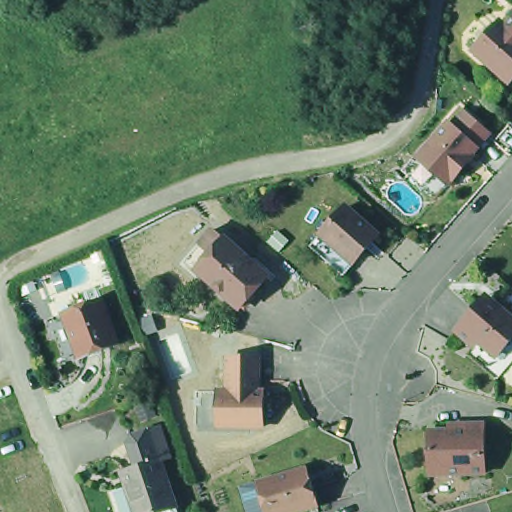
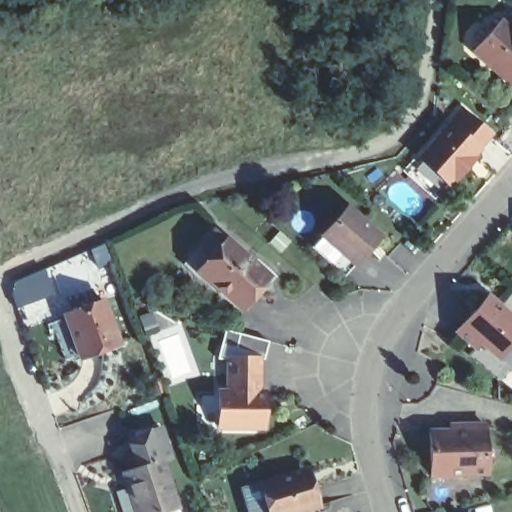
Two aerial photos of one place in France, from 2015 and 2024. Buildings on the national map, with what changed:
unchanged [(512,12),(512,71),(477,41),(505,11),(509,15),(512,12)]
unchanged [(491,132),(448,188),(417,157),(460,106),(491,132)]
unchanged [(322,232),(332,220),(357,192),(386,219),(388,221),(374,237),(363,248),(353,260),(322,232)]
unchanged [(271,266),(278,272),(250,304),(207,266),(197,256),(225,224),(235,234),(263,258),(271,266)]
unchanged [(499,293),(512,304),(512,336),(502,347),(483,331),(478,338),(478,337),(460,322),(485,294),(492,287),(499,293)]
unchanged [(62,313),(75,308),(74,304),(112,290),(127,330),(128,336),(112,342),(90,350),(89,345),(75,350),(62,313)]
unchanged [(502,370),(472,344),(478,337),(478,338),(483,331),(502,347),(512,336),(512,358),(502,370)]
unchanged [(258,353),(258,379),(258,387),(263,387),(263,422),(218,422),(218,387),(228,387),(228,353),(258,353)]
unchanged [(449,420),(465,420),(484,419),(485,468),(430,470),(429,427),(450,426),(449,420)]
unchanged [(132,477),(127,463),(166,450),(182,498),(187,512),(144,512),(143,511),(132,477)]
unchanged [(268,473),(310,460),(316,459),(321,476),(328,497),(281,511),(281,512),(261,512),(250,478),(268,473)]

